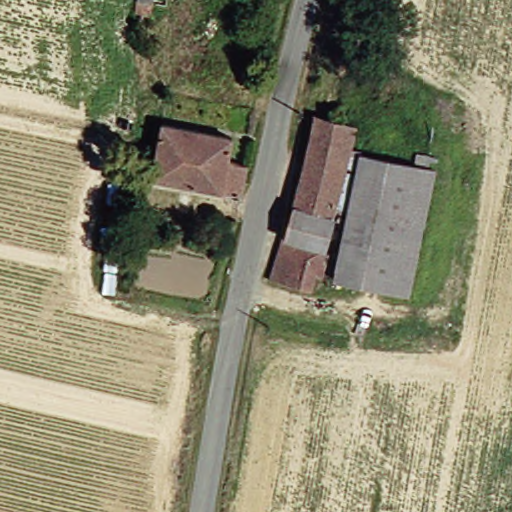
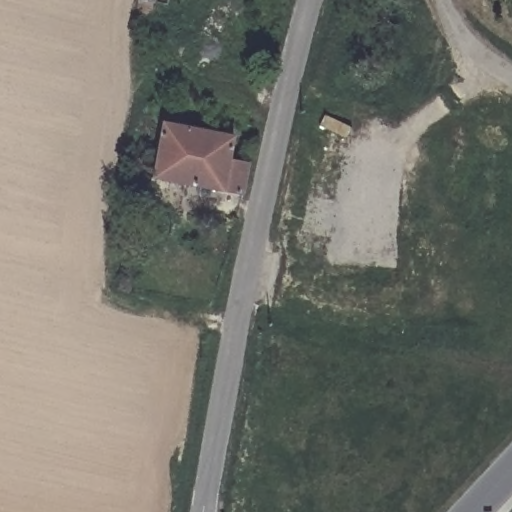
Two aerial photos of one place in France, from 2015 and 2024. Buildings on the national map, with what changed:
unchanged [(164,121),(237,137),(232,161),(249,166),(241,196),(153,179),(164,121)]
demolished [(280,228),(291,232),(312,152),(347,162),(343,180),(316,286),(268,273),(280,228)]
demolished [(417,262),(349,278),(338,276),(361,184),(368,156),(374,157),(440,172),(417,262)]
demolished [(417,262),(409,294),(349,278),(417,262)]

